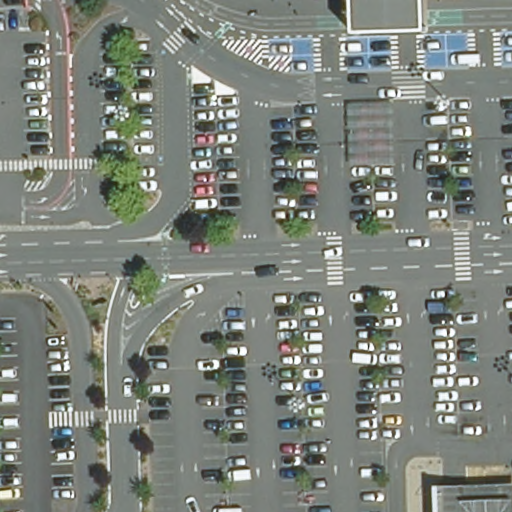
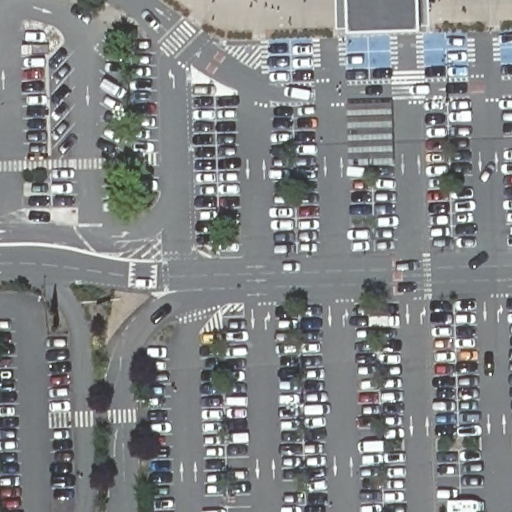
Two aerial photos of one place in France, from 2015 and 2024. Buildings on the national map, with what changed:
unchanged [(349,31),(347,0),(418,0),(418,28),(349,31)]
demolished [(427,486),(512,483),(512,512),(427,512),(427,486)]

